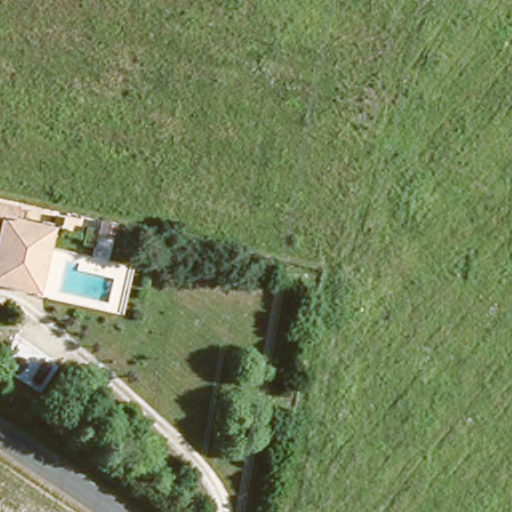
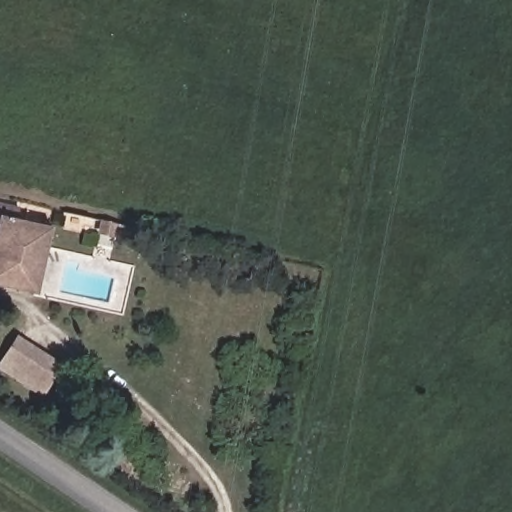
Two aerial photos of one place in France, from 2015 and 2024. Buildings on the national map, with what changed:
unchanged [(46,236),(16,228),(11,247),(0,245),(0,213),(49,225),(46,236)]
unchanged [(46,236),(39,271),(0,262),(0,245),(11,247),(16,228),(46,236)]
new [(0,361),(16,335),(63,365),(41,398),(0,371),(0,361)]

